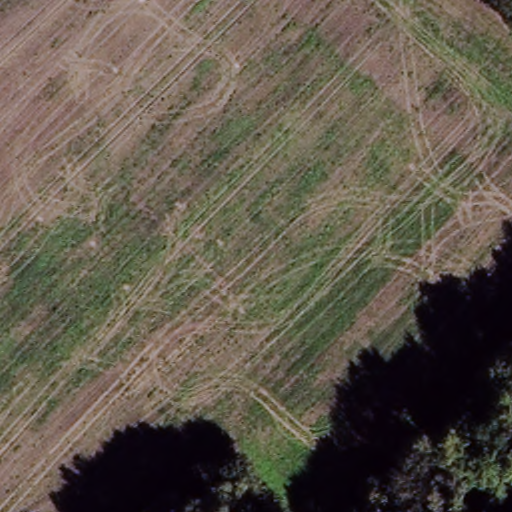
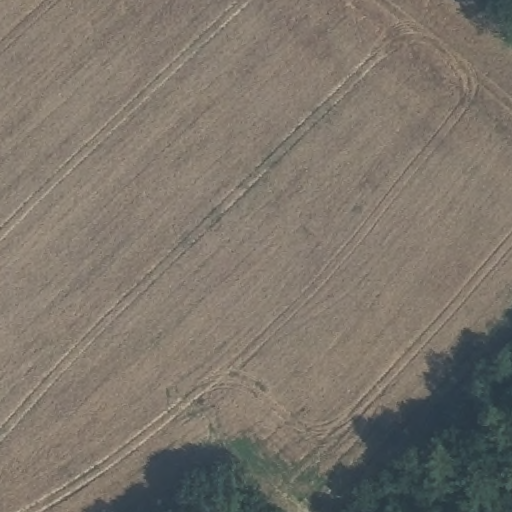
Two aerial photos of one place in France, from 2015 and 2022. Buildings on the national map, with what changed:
[]

